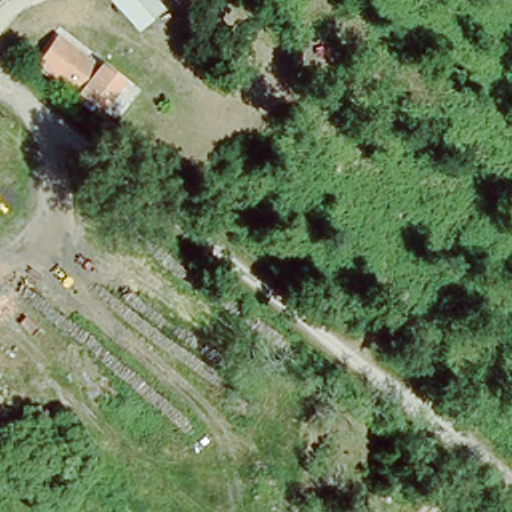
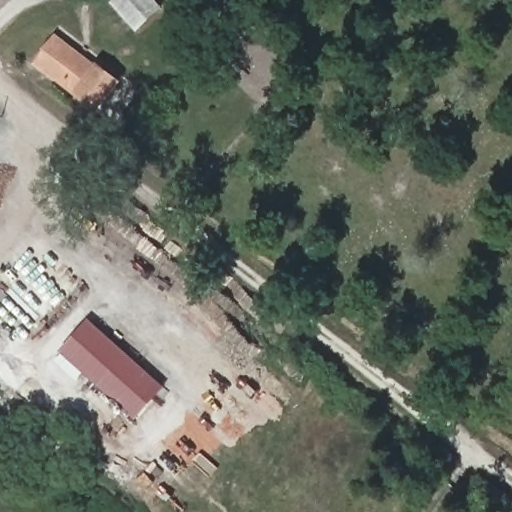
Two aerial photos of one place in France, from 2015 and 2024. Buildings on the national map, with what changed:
unchanged [(109,0),(155,0),(163,9),(136,32),(109,0)]
unchanged [(95,106),(38,58),(55,37),(92,68),(96,64),(115,80),(95,106)]
demolished [(202,90),(154,66),(167,40),(215,64),(202,90)]
new [(58,353),(88,321),(165,389),(135,422),(58,353)]

